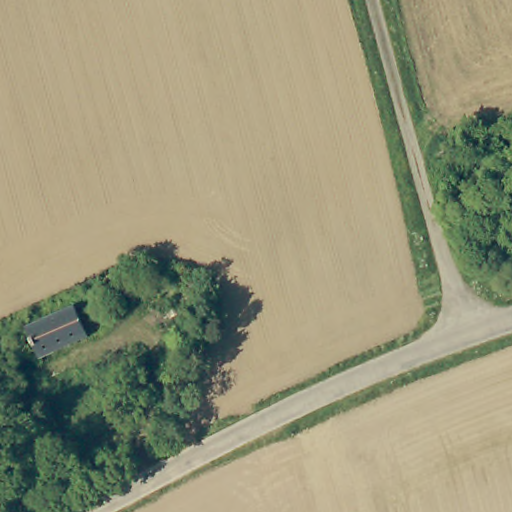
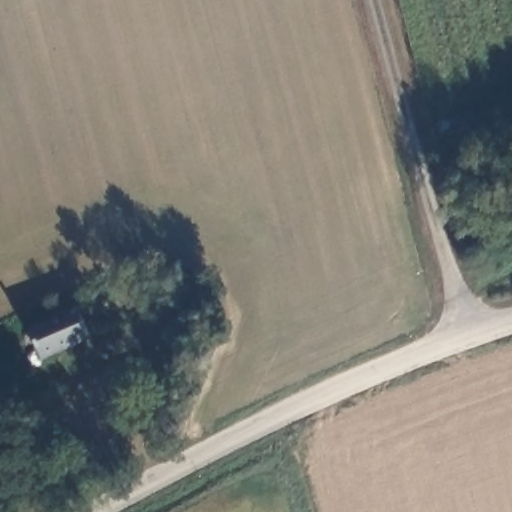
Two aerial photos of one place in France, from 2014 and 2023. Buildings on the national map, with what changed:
unchanged [(88,337),(38,358),(24,326),(75,305),(88,337)]

